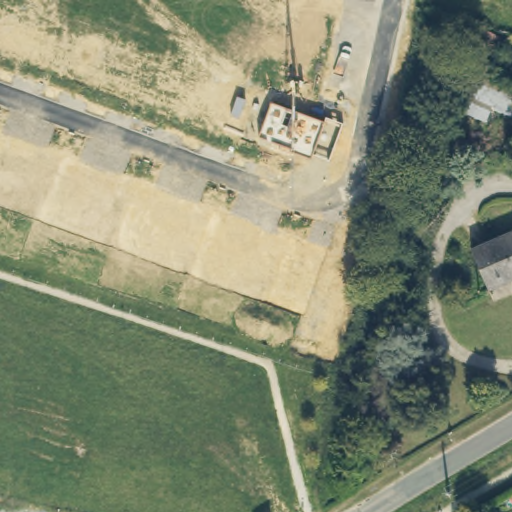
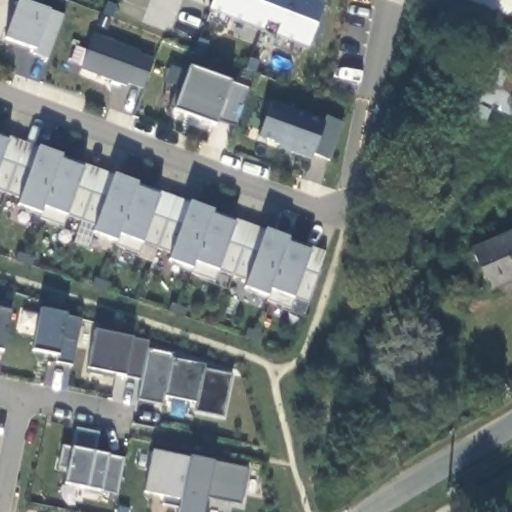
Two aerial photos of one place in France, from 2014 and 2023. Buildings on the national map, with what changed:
new [(23,0),(67,16),(51,59),(36,53),(37,49),(7,38),(21,0),(23,0)]
new [(291,55),(272,48),(275,37),(209,12),(213,0),(311,0),(323,5),(307,50),(293,45),(291,55)]
new [(145,90),(129,84),(128,87),(81,70),(97,35),(142,53),(141,55),(155,61),(145,90)]
unchanged [(512,79),(512,115),(491,106),(484,124),(447,109),(466,60),(512,79)]
new [(217,121),(215,127),(175,113),(191,68),(231,84),(249,90),(235,129),(217,121)]
unchanged [(313,156),(312,161),(288,155),(290,150),(259,140),(271,104),(323,121),(326,118),(342,123),(328,162),(313,156)]
new [(37,151),(39,147),(62,154),(61,161),(83,169),(83,165),(114,175),(139,184),(137,188),(157,196),(158,192),(190,202),(214,211),(213,216),(231,222),(232,219),(266,230),(290,240),(288,244),(309,250),(326,255),(308,306),(292,300),(288,310),(266,303),(268,298),(244,291),(247,282),(217,272),(214,282),(191,274),(193,270),(168,263),(171,255),(142,244),(138,254),(117,247),(119,243),(93,235),(95,227),(67,217),(62,227),(41,220),(42,215),(17,207),(22,198),(0,191),(0,138),(5,140),(37,151)]
unchanged [(512,235),(512,278),(487,290),(471,254),(512,235)]
new [(0,306),(12,308),(10,313),(4,352),(0,352),(0,306)]
new [(56,363),(57,355),(33,351),(41,308),(66,315),(81,320),(72,366),(56,363)]
new [(127,376),(119,380),(89,375),(89,369),(96,331),(132,340),(148,342),(147,350),(142,379),(127,376)]
new [(196,412),(198,404),(165,397),(162,407),(138,401),(147,350),(172,356),(171,360),(204,366),(204,370),(231,376),(222,418),(196,412)]
new [(67,472),(58,470),(63,446),(72,448),(76,430),(98,433),(93,453),(109,457),(124,461),(119,495),(102,492),(66,485),(67,472)]
new [(179,501),(146,495),(154,452),(189,460),(179,501)]
new [(190,457),(214,462),(249,468),(241,506),(206,499),(203,512),(176,512),(190,457)]

